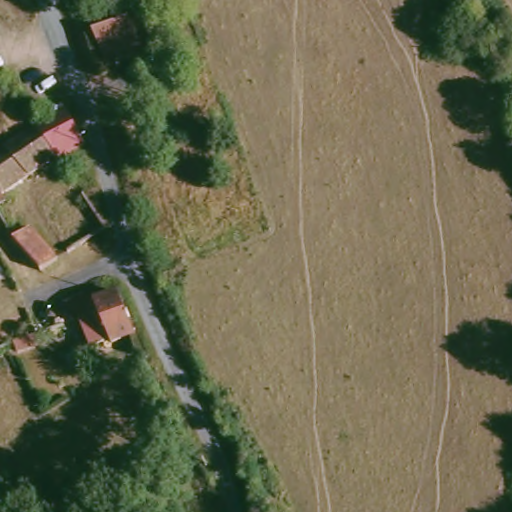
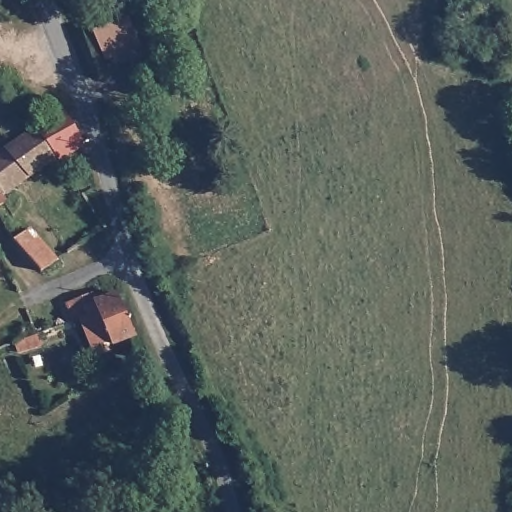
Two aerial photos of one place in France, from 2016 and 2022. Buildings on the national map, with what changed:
unchanged [(126,11),(137,39),(103,53),(91,25),(126,11)]
unchanged [(81,158),(68,167),(61,157),(51,164),(47,159),(28,130),(58,113),(76,138),(81,158)]
unchanged [(0,188),(0,148),(28,130),(47,159),(0,188)]
unchanged [(12,237),(28,226),(55,258),(38,269),(12,237)]
unchanged [(131,335),(108,346),(105,340),(85,349),(74,317),(61,318),(56,299),(83,289),(88,301),(115,291),(131,335)]

